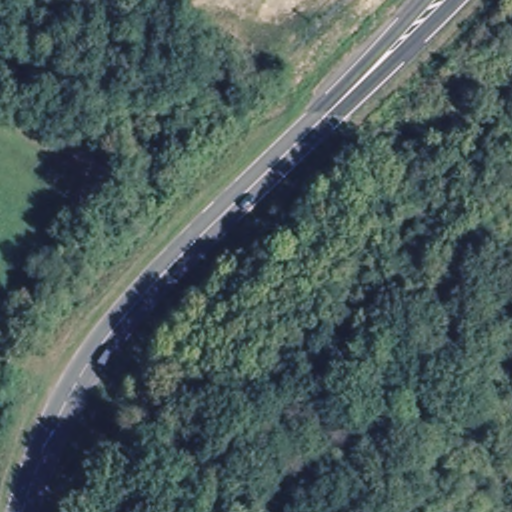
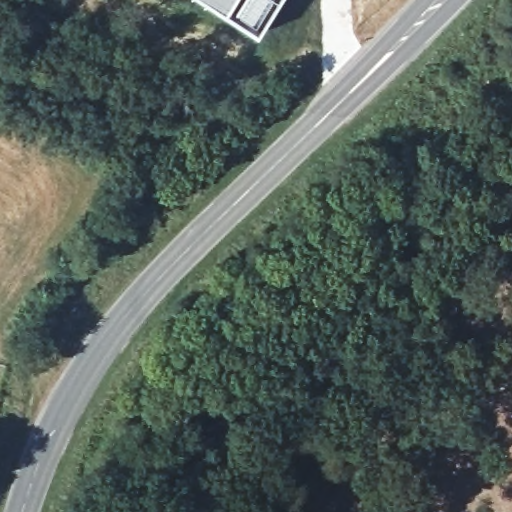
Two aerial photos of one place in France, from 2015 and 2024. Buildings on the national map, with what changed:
new [(210,0),(282,0),(260,33),(210,0)]

